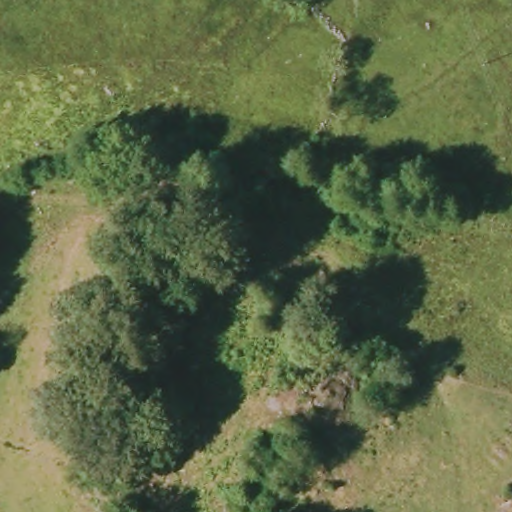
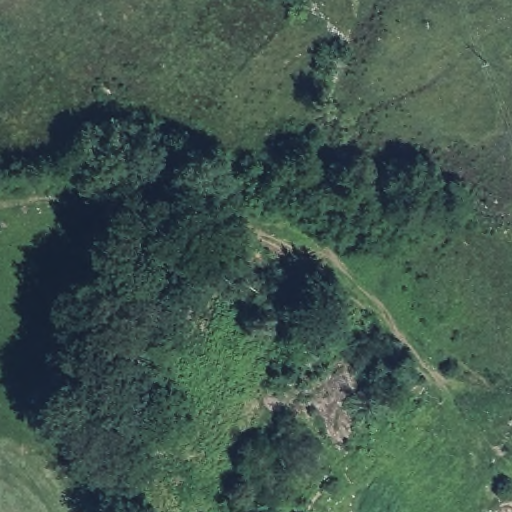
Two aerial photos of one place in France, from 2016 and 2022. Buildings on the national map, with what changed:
[]

